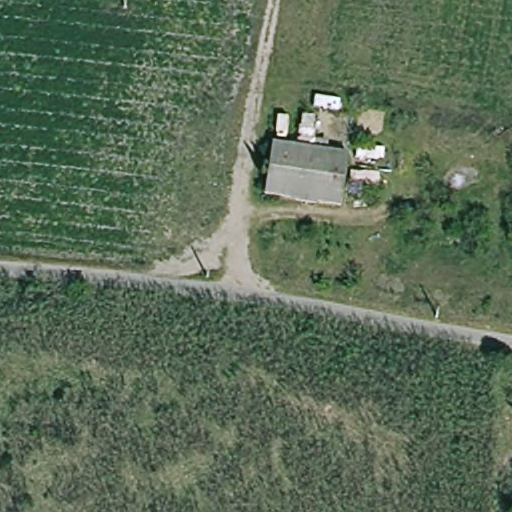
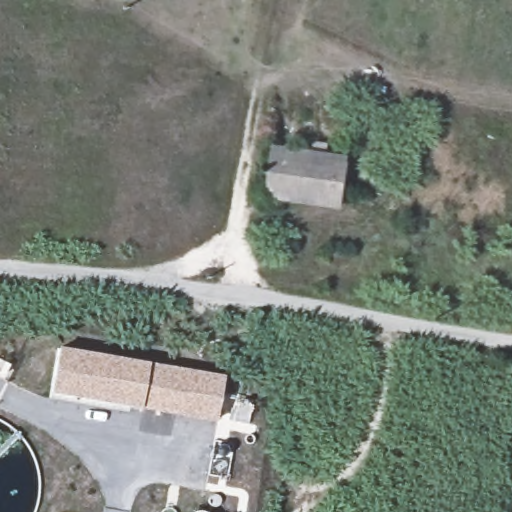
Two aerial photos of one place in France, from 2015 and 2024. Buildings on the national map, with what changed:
unchanged [(264,195),(275,142),(351,153),(343,206),(264,195)]
new [(224,375),(215,422),(139,409),(51,393),(58,347),(149,362),(224,375)]

